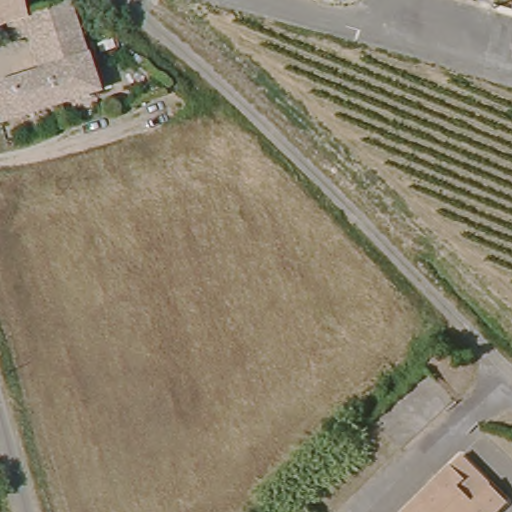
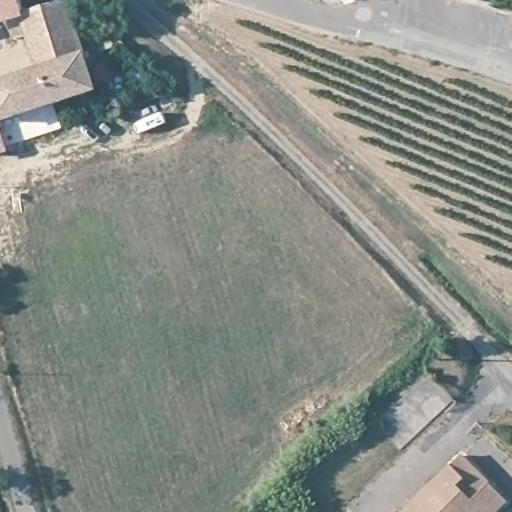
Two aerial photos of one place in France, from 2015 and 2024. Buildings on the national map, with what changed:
unchanged [(22,13),(0,20),(0,0),(24,0),(27,11),(22,13)]
unchanged [(65,1),(94,91),(0,120),(0,77),(37,65),(22,13),(27,11),(65,1)]
unchanged [(461,458),(508,502),(498,512),(406,512),(461,458)]

